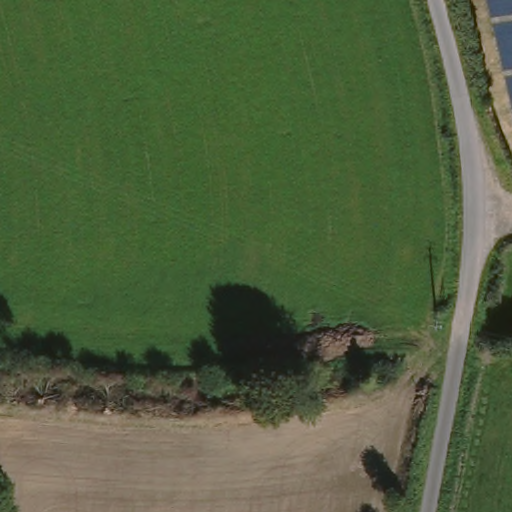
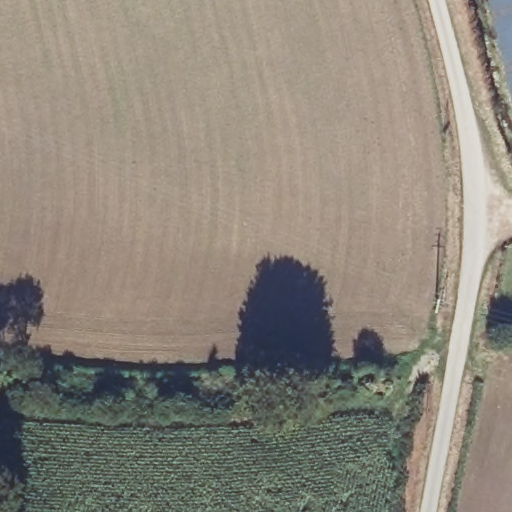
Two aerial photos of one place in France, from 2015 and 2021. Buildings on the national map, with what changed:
unchanged [(490,0),(512,0),(512,102),(490,0)]

